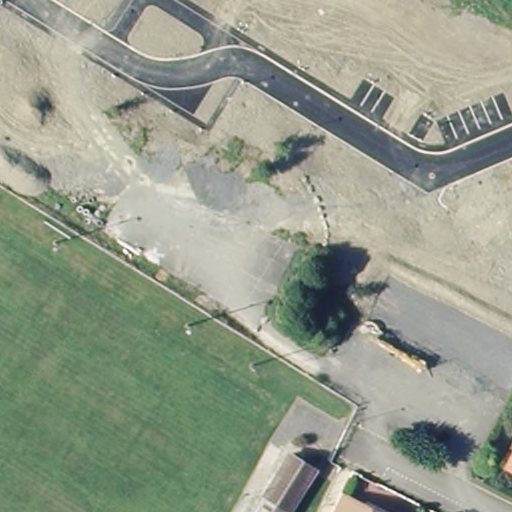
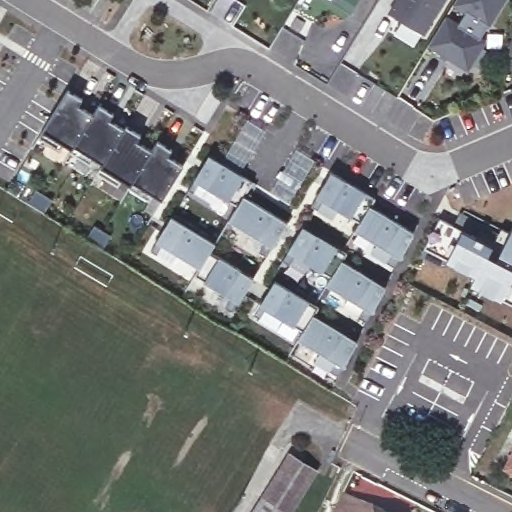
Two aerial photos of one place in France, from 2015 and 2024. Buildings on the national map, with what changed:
new [(346,12),(325,0),(354,0),(346,12)]
new [(422,35),(387,15),(396,0),(443,0),(422,35)]
new [(440,16),(453,24),(461,11),(448,3),(450,0),(499,0),(476,37),(480,40),(463,68),(423,44),(440,16)]
new [(512,12),(512,52),(504,51),(512,12)]
new [(63,89),(78,98),(74,104),(88,114),(94,104),(109,113),(105,119),(119,128),(121,125),(136,134),(132,140),(147,150),(152,140),(167,149),(163,155),(178,165),(157,200),(147,194),(144,200),(123,187),(125,185),(116,179),(112,185),(92,172),(98,163),(89,158),(85,164),(65,151),(67,149),(58,143),(54,149),(34,136),(63,89)]
new [(204,155),(248,182),(239,196),(282,223),(267,247),(223,220),(232,206),(189,180),(204,155)]
new [(326,172),(370,199),(365,206),(408,233),(395,258),(349,230),(354,223),(311,196),(326,172)]
new [(43,212),(35,206),(27,201),(35,189),(43,193),(52,199),(43,212)]
new [(472,284),(476,275),(445,258),(440,267),(420,256),(425,248),(440,218),(453,225),(460,212),(469,217),(472,235),(476,237),(479,230),(496,240),(501,229),(510,232),(512,230),(512,304),(472,284)]
new [(166,216),(210,244),(205,251),(248,277),(233,302),(189,275),(194,267),(151,241),(166,216)]
new [(101,248),(93,242),(85,238),(93,225),(101,229),(109,235),(101,248)]
new [(298,226),(341,253),(337,260),(380,287),(367,312),(321,285),(326,277),(283,251),(298,226)]
new [(269,280),(313,307),(309,315),(352,341),(339,367),(293,339),(297,331),(254,305),(269,280)]
unchanged [(316,472),(292,512),(255,512),(289,455),(316,472)]
unchanged [(346,493),(381,512),(336,512),(344,498),(346,493)]

